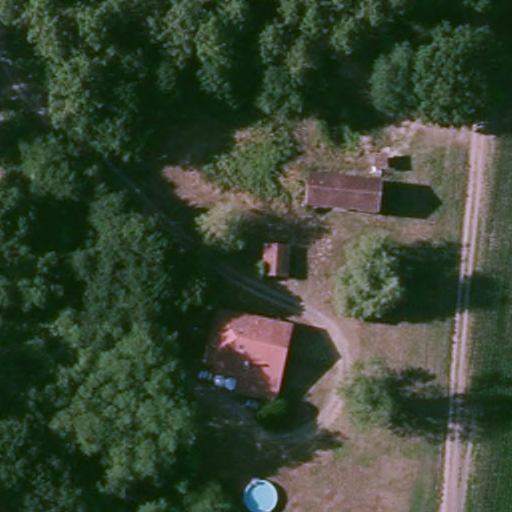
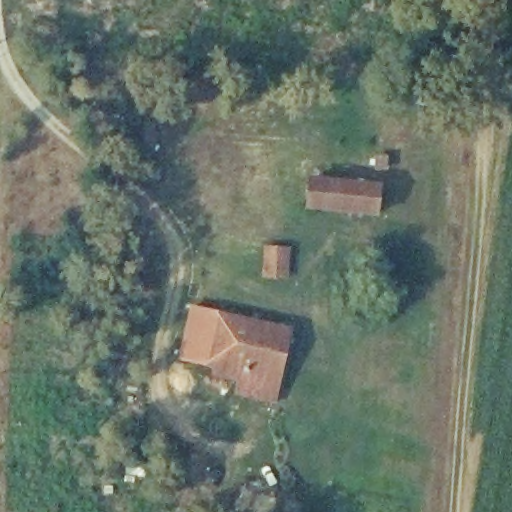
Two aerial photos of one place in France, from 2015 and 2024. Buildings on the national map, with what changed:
unchanged [(382,178),(379,213),(304,208),(310,172),(318,173),(382,178)]
unchanged [(276,244),(276,267),(260,267),(258,244),(276,244)]
new [(189,304),(291,328),(276,404),(234,394),(236,383),(211,376),(212,369),(177,361),(189,304)]
demolished [(243,401),(241,364),(210,361),(214,318),(290,327),(285,401),(243,401)]

